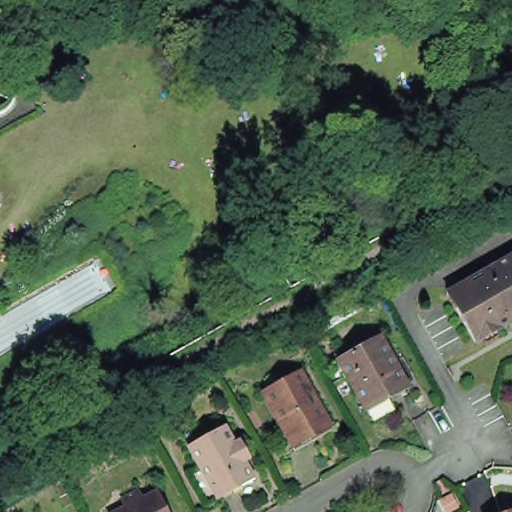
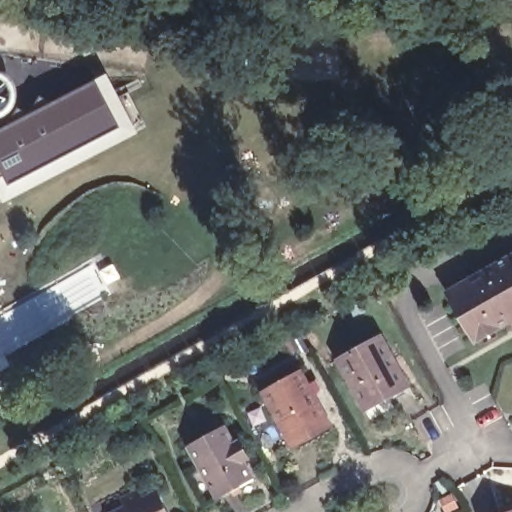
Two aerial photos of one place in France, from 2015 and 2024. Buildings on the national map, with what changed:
new [(115,98),(127,92),(146,128),(134,134),(1,204),(0,205),(0,130),(101,74),(115,98)]
unchanged [(474,335),(447,286),(512,251),(512,314),(474,335)]
unchanged [(375,412),(371,403),(352,370),(342,351),(384,328),(414,380),(394,391),(397,399),(375,412)]
unchanged [(333,427),(296,447),(292,440),(264,389),(301,369),(329,419),(333,427)]
unchanged [(225,424),(236,442),(241,439),(250,457),(245,460),(255,477),(219,497),(189,444),(225,424)]
unchanged [(126,508),(122,501),(140,492),(144,500),(159,492),(168,512),(118,512),(126,508)]
unchanged [(512,511),(512,512),(510,512),(512,511)]

